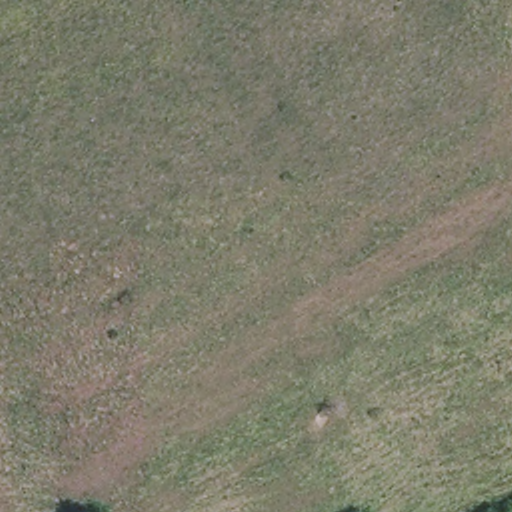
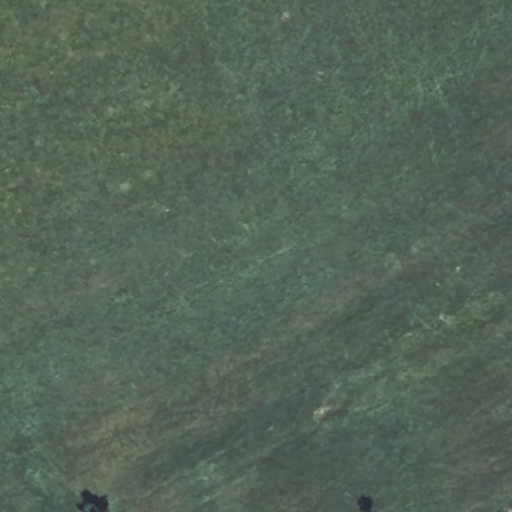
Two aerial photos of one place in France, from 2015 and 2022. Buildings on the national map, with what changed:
[]

